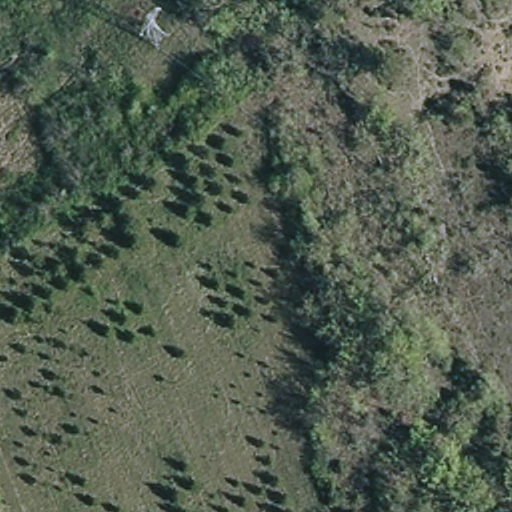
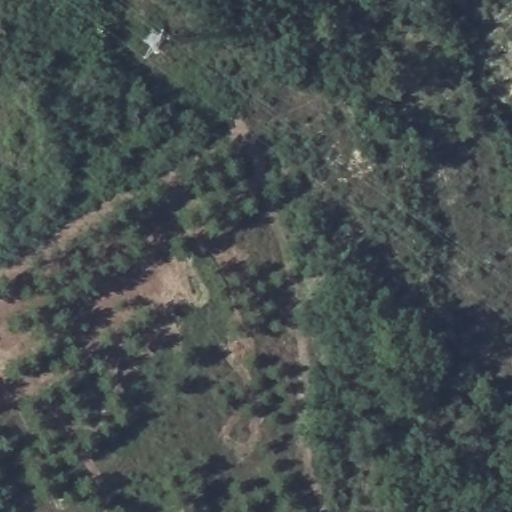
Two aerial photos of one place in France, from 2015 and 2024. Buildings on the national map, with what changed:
unchanged [(312,239),(320,237),(327,234),(336,254),(321,261),(312,239)]

